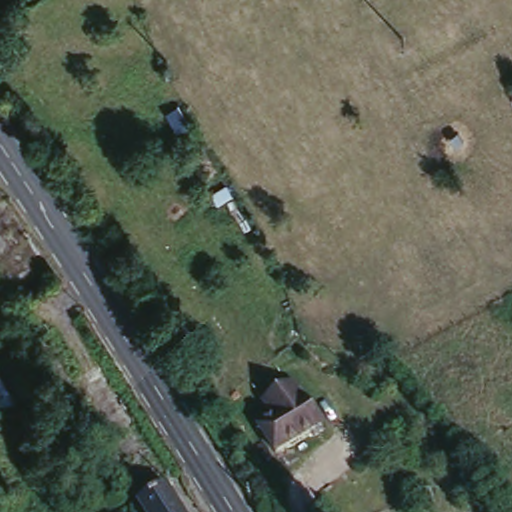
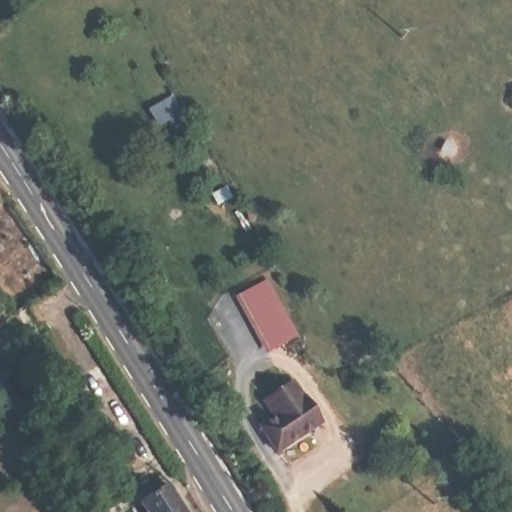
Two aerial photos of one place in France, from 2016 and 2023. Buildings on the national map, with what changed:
unchanged [(512,92),(511,90),(512,90),(512,92)]
new [(268,278),(298,334),(268,350),(238,294),(268,278)]
unchanged [(258,429),(273,418),(259,395),(288,375),(321,423),(275,456),(258,429)]
unchanged [(166,486),(181,512),(139,512),(135,506),(166,486)]

